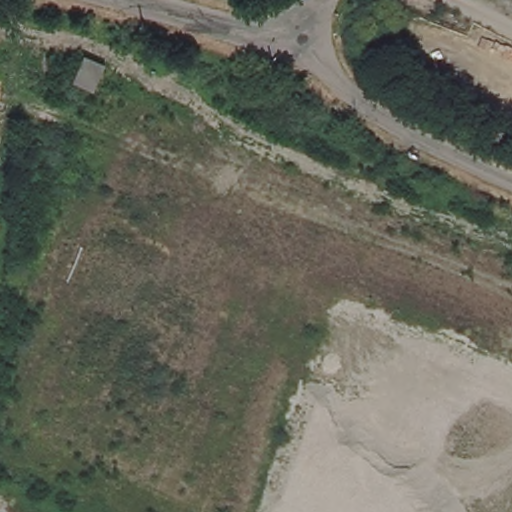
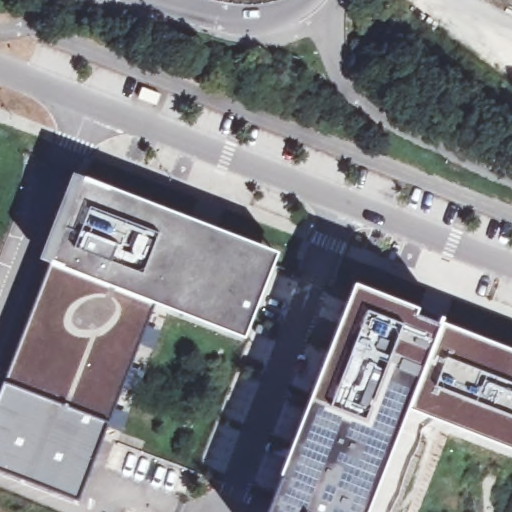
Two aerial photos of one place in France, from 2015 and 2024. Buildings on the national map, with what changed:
demolished [(98,85),(82,78),(93,54),(108,62),(98,85)]
new [(279,253),(246,338),(154,303),(51,262),(40,258),(74,172),(279,253)]
new [(108,422),(77,498),(0,468),(0,391),(3,382),(51,262),(154,303),(108,422)]
new [(358,284),(421,308),(418,316),(442,323),(408,410),(368,512),(269,512),(358,284)]
new [(512,350),(512,449),(408,410),(442,323),(512,350)]

